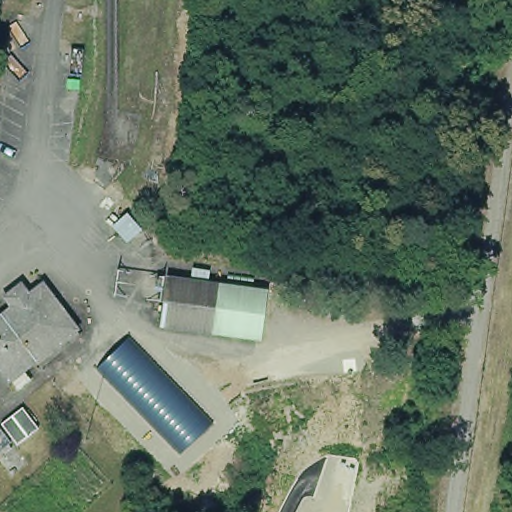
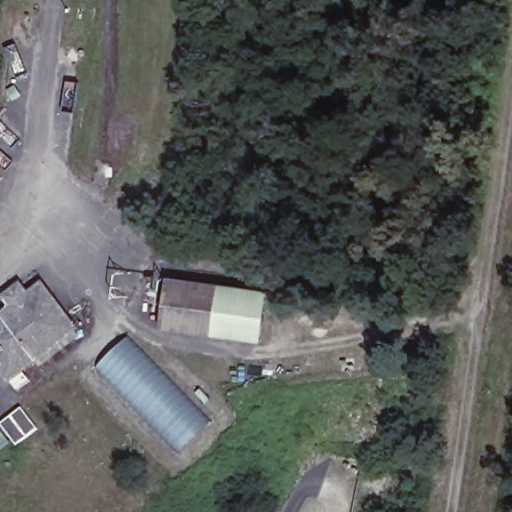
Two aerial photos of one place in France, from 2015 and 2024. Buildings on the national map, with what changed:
unchanged [(152,332),(162,281),(266,292),(259,344),(152,332)]
unchanged [(83,338),(19,390),(0,367),(0,318),(40,286),(83,338)]
unchanged [(210,424),(179,454),(97,368),(128,339),(210,424)]
unchanged [(42,431),(17,448),(12,443),(0,453),(0,425),(25,407),(42,431)]

